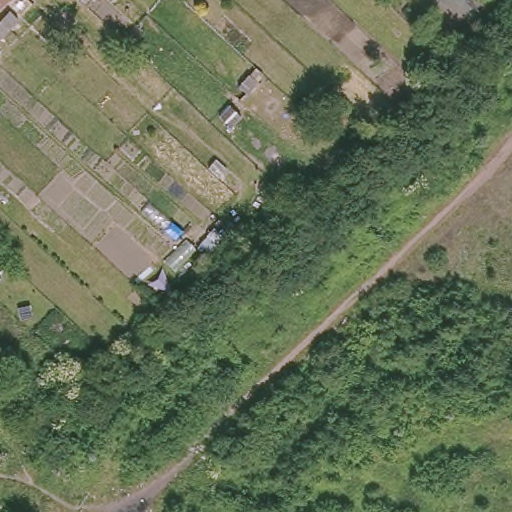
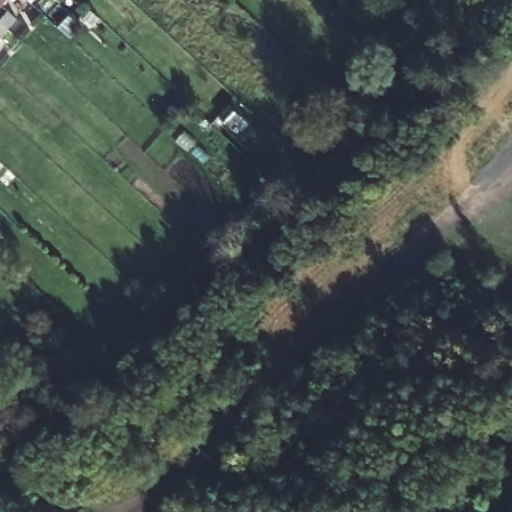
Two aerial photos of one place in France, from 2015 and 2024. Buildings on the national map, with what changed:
unchanged [(0,7),(0,0),(8,0),(1,8),(0,7)]
unchanged [(8,15),(17,23),(8,33),(0,41),(0,23),(8,15)]

